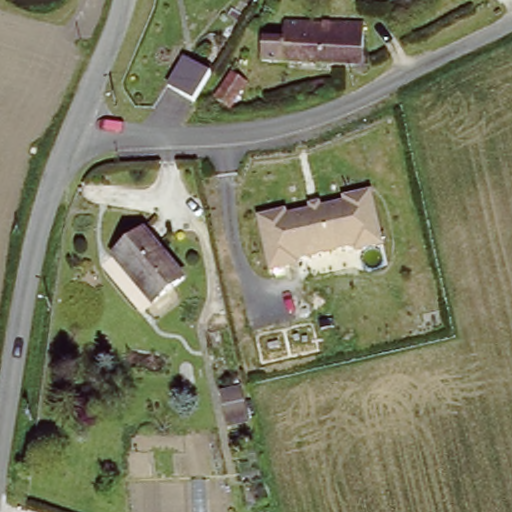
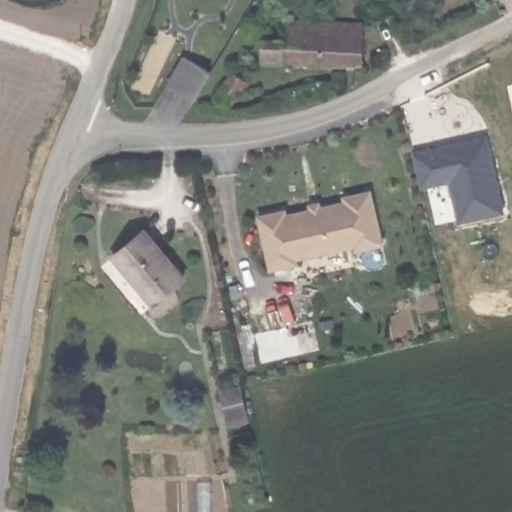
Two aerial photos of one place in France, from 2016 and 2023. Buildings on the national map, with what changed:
unchanged [(284,40),(285,22),(362,24),(362,64),(262,62),(262,40),(284,40)]
new [(195,102),(167,85),(184,57),(212,74),(195,102)]
unchanged [(234,76),(247,87),(229,110),(215,100),(234,76)]
new [(487,139),(490,154),(502,214),(459,223),(450,182),(420,188),(414,154),(449,146),(487,139)]
unchanged [(340,198),(367,192),(377,246),(351,252),(350,247),(292,261),(293,266),(267,272),(255,218),(281,212),(282,217),(307,211),(305,206),(315,204),(317,209),(341,203),(340,198)]
unchanged [(160,302),(115,262),(142,234),(173,263),(185,274),(177,283),(160,302)]
unchanged [(237,389),(244,424),(225,429),(219,393),(237,389)]

